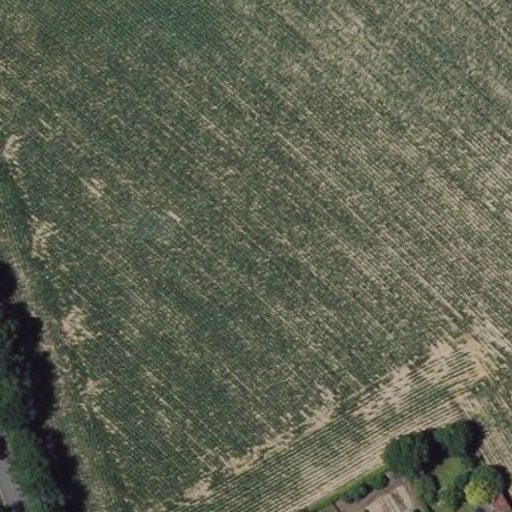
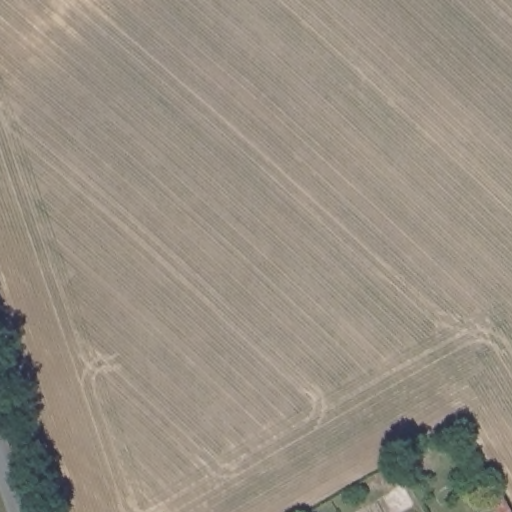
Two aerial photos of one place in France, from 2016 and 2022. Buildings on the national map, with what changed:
unchanged [(501,492),(512,512),(494,512),(487,500),(501,492)]

